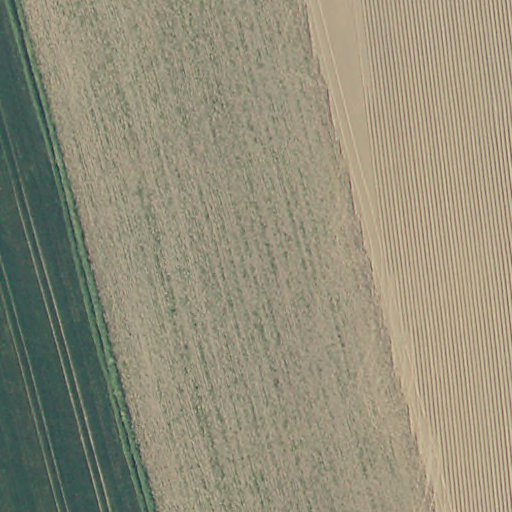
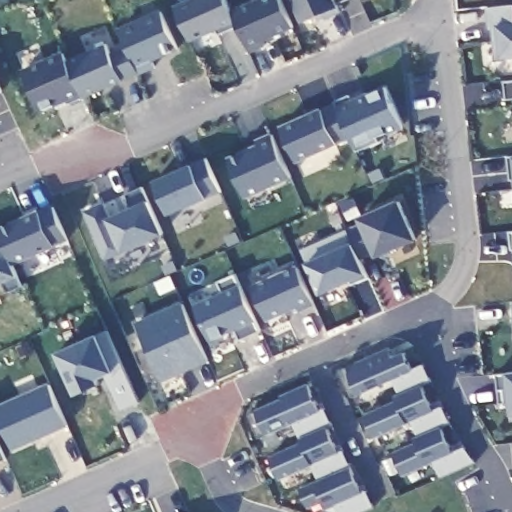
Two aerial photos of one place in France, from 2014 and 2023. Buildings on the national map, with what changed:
new [(292,28),(246,49),(236,25),(217,34),(215,28),(189,41),(172,5),(184,0),(225,0),(230,10),(252,0),(280,0),(292,28)]
new [(336,2),(338,7),(300,23),(290,0),(341,0),(336,2)]
new [(501,58),(496,59),(492,26),(488,27),(486,8),(512,5),(512,57),(501,58)]
new [(178,50),(153,61),(151,58),(134,67),(137,74),(121,79),(40,113),(20,69),(61,51),(65,59),(105,42),(109,51),(125,44),(116,29),(159,10),(178,50)]
new [(505,99),(503,82),(512,80),(512,98),(505,99)]
new [(279,126),(333,101),(348,96),(350,99),(383,86),(402,128),(355,149),(350,139),(295,161),(279,126)]
new [(0,92),(0,88),(1,92),(0,92)]
new [(290,178),(246,198),(228,158),(256,145),(255,140),(270,134),(290,178)]
new [(510,181),(507,156),(512,155),(512,180),(510,181)]
new [(220,192),(206,198),(169,215),(154,181),(191,165),(205,160),(220,192)]
new [(84,212),(102,203),(108,217),(130,207),(125,195),(142,188),(148,201),(163,234),(120,253),(104,259),(84,212)]
new [(417,239),(375,258),(372,253),(360,259),(365,272),(321,292),(309,265),(300,250),(348,228),(360,224),(357,217),(399,199),(417,239)]
new [(12,265),(17,276),(21,285),(6,291),(2,283),(0,283),(0,227),(51,206),(66,240),(12,265)]
new [(510,249),(508,231),(512,231),(512,249),(510,249)]
new [(314,305),(300,312),(296,307),(266,321),(250,284),(296,266),(314,305)]
new [(221,291),(218,282),(234,275),(238,283),(258,330),(240,339),(236,330),(210,341),(194,304),(221,291)]
new [(181,302),(208,360),(161,380),(135,322),(181,302)]
new [(512,302),(512,307),(511,302),(512,302)]
new [(108,330),(137,401),(121,409),(105,374),(95,378),(96,384),(75,393),(56,352),(96,335),(108,330)]
new [(386,348),(390,358),(402,352),(409,369),(420,364),(428,381),(419,386),(397,395),(390,378),(349,396),(337,370),(386,348)]
new [(505,374),(512,373),(512,416),(510,416),(508,401),(500,402),(496,375),(505,374)]
new [(12,450),(0,422),(0,404),(47,384),(67,426),(12,450)]
new [(294,441),(287,426),(254,441),(243,416),(276,401),(275,398),(301,386),(313,411),(317,409),(326,427),(321,429),(294,441)]
new [(395,402),(392,397),(397,395),(419,386),(430,410),(440,406),(448,423),(439,427),(415,438),(408,420),(371,436),(362,416),(395,402)]
new [(413,444),(411,440),(415,438),(439,427),(450,452),(462,447),(472,462),(437,478),(430,462),(400,476),(390,454),(413,444)]
new [(321,429),(332,454),(337,452),(344,468),(312,482),(305,466),(273,480),(263,460),(296,446),(294,441),(321,429)]
new [(320,511),(316,503),(302,510),(294,490),(344,468),(355,494),(360,492),(368,509),(361,512),(331,512),(329,507),(320,511)]

